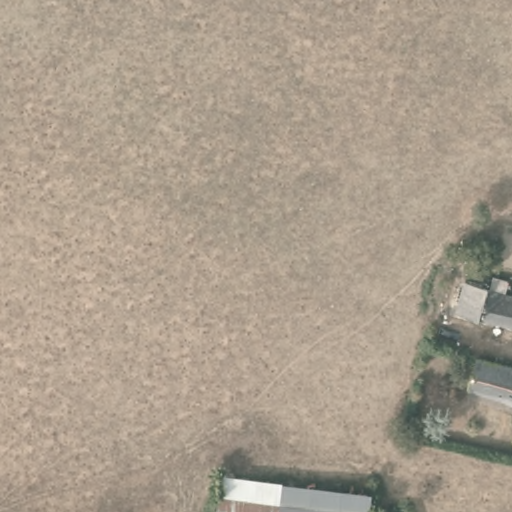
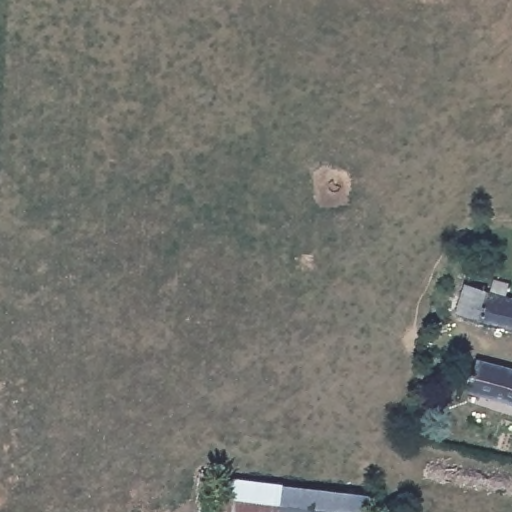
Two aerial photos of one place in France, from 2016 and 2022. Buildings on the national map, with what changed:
unchanged [(465,281),(512,294),(512,324),(456,309),(465,281)]
unchanged [(474,390),(459,385),(465,355),(512,366),(512,388),(509,401),(493,398),(491,408),(474,404),(474,390)]
unchanged [(509,401),(512,388),(512,401),(509,401)]
unchanged [(216,478),(280,485),(277,510),(277,512),(212,512),(216,478)]
unchanged [(277,510),(280,485),(386,494),(387,512),(277,512),(277,510)]

